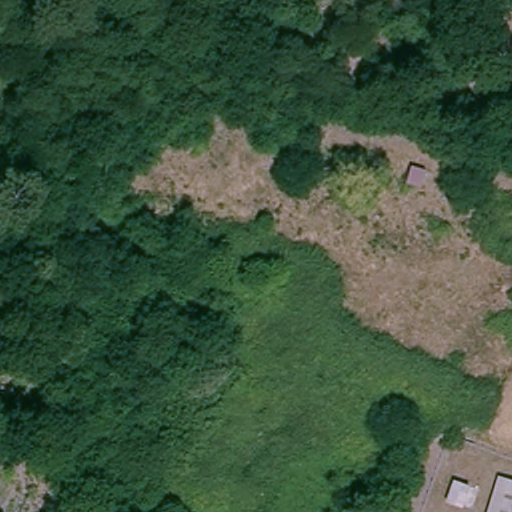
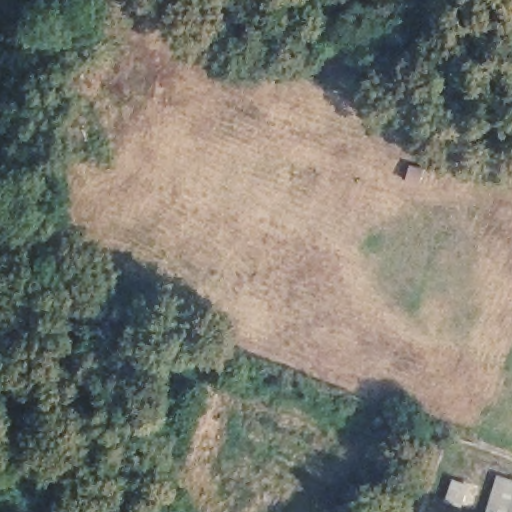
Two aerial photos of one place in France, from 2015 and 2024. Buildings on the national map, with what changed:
unchanged [(512,473),(512,512),(486,512),(499,470),(512,473)]

